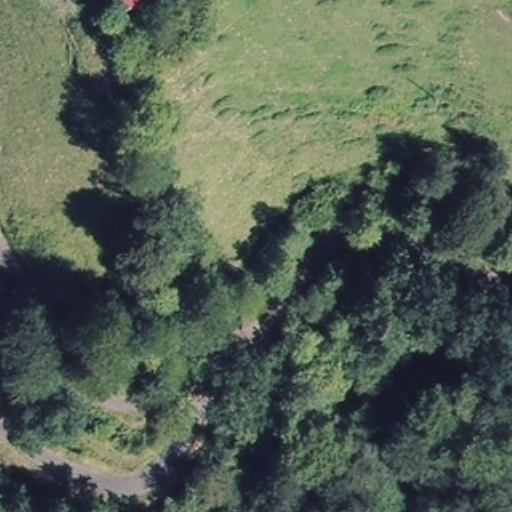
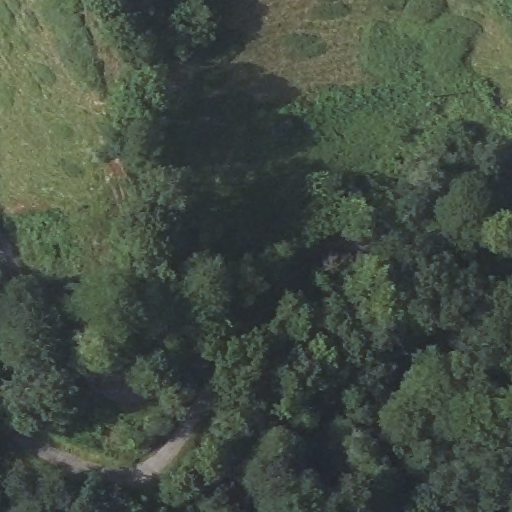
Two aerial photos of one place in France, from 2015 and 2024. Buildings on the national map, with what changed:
unchanged [(110,0),(127,0),(114,8),(110,0)]

